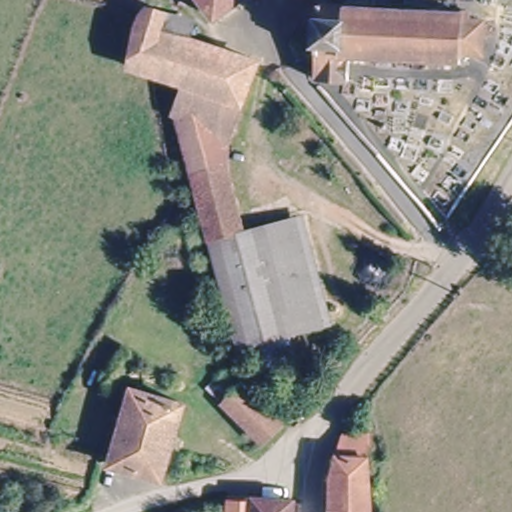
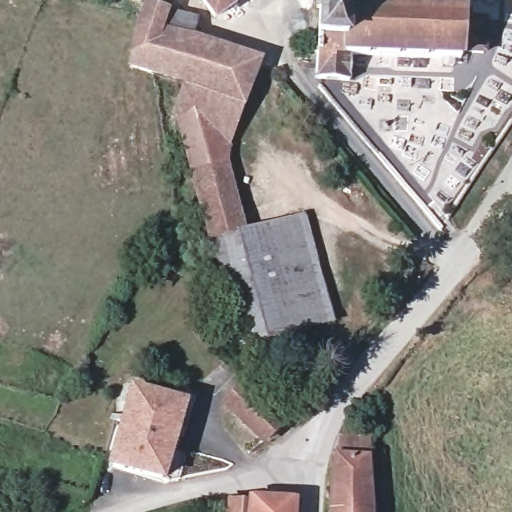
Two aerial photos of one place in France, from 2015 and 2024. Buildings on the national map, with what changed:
unchanged [(143,0),(145,0),(166,7),(160,32),(258,56),(238,104),(181,82),(155,74),(122,63),(134,26),(138,15),(143,0)]
unchanged [(202,0),(233,0),(214,16),(202,0)]
unchanged [(340,0),(466,6),(467,16),(487,17),(486,49),(459,48),(458,59),(348,54),(349,79),(315,79),(315,54),(318,0),(340,0)]
unchanged [(230,130),(174,108),(181,82),(238,104),(230,130)]
unchanged [(220,154),(239,230),(212,237),(174,108),(230,130),(220,154)]
unchanged [(265,224),(310,214),(335,317),(293,325),(265,224)]
unchanged [(239,230),(265,224),(293,325),(239,340),(212,237),(239,230)]
unchanged [(110,460),(132,386),(185,404),(162,473),(137,469),(110,460)]
unchanged [(258,438),(227,408),(245,387),(279,418),(258,438)]
unchanged [(326,500),(334,460),(340,438),(369,438),(367,462),(367,512),(327,512),(326,500)]
unchanged [(290,512),(221,512),(221,493),(245,494),(290,497),(290,512)]

